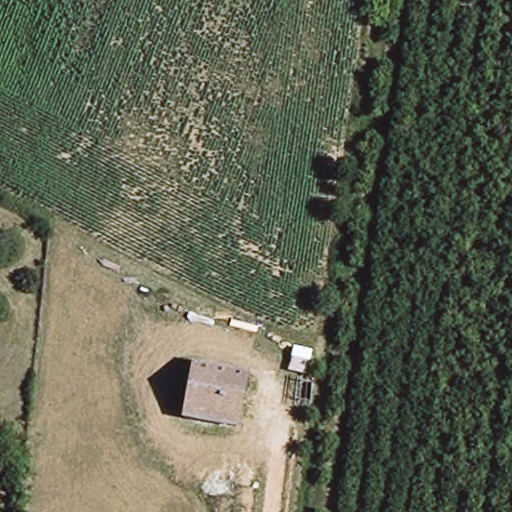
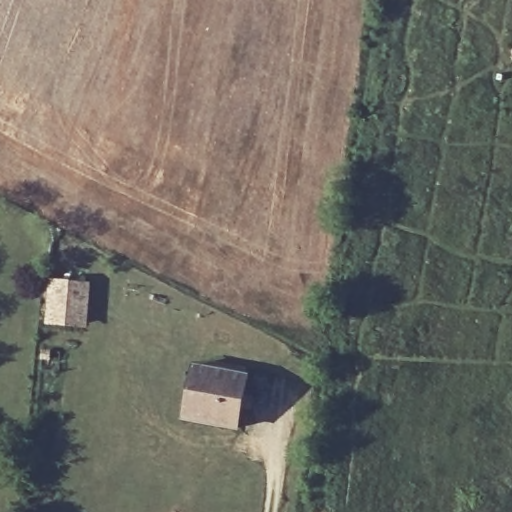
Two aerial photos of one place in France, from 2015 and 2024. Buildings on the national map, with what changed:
new [(89,330),(47,326),(51,279),(91,283),(89,330)]
unchanged [(190,363),(248,373),(239,430),(181,420),(190,363)]

